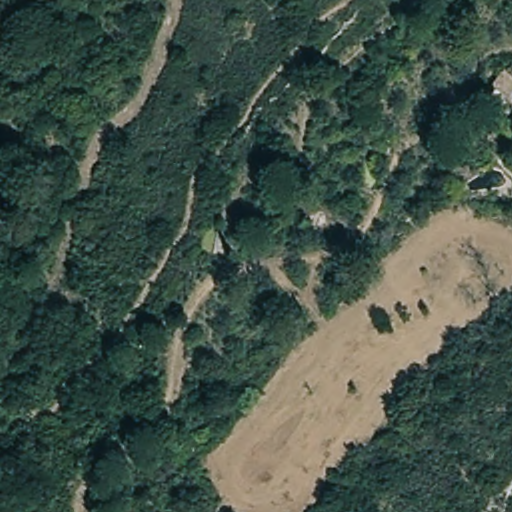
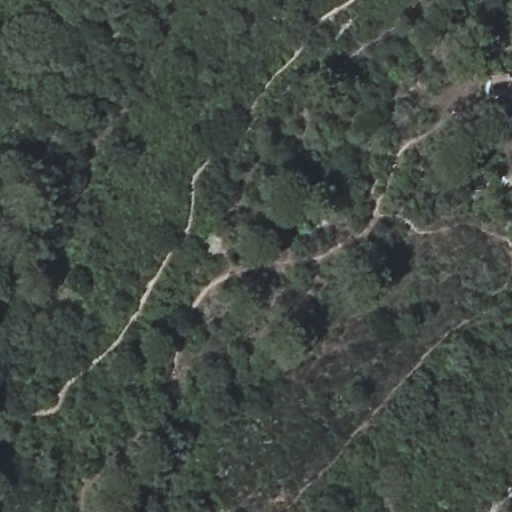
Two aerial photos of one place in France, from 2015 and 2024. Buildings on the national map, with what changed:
unchanged [(502,73),(512,81),(512,107),(489,92),(502,73)]

